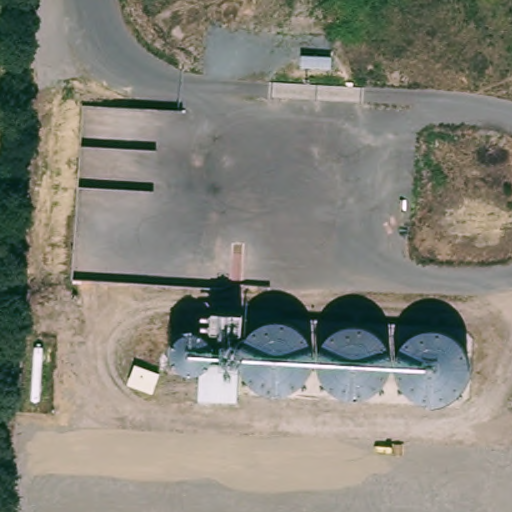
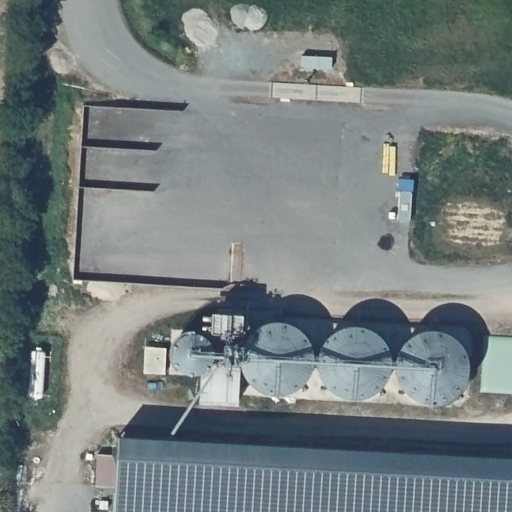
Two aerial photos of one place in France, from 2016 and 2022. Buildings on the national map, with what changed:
unchanged [(250,308),(250,329),(257,324),(268,318),(286,317),(300,322),(311,332),(318,354),(326,337),(340,325),(356,322),(372,324),(387,335),(396,355),(400,347),(407,337),(418,329),(435,326),(447,329),(461,338),(470,353),(470,370),(466,383),(455,396),(440,401),(425,400),(412,393),(402,383),(396,366),(390,378),(385,386),(371,394),(357,397),(344,396),(326,384),(317,367),(308,381),(295,389),(281,392),(268,391),(255,385),(245,374),(241,362),(220,360),(217,365),(209,370),(198,372),(189,370),(181,364),(176,352),(176,343),(180,333),(187,327),(195,326),(210,330),(211,307),(250,308)]
new [(221,374),(240,375),(239,403),(219,402),(221,374)]
new [(512,457),(512,512),(115,512),(119,435),(512,457)]

